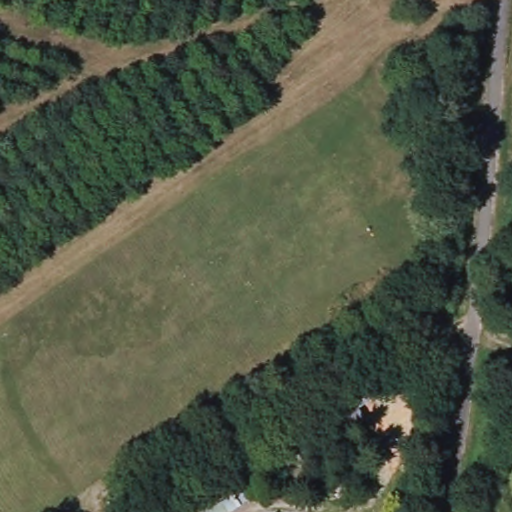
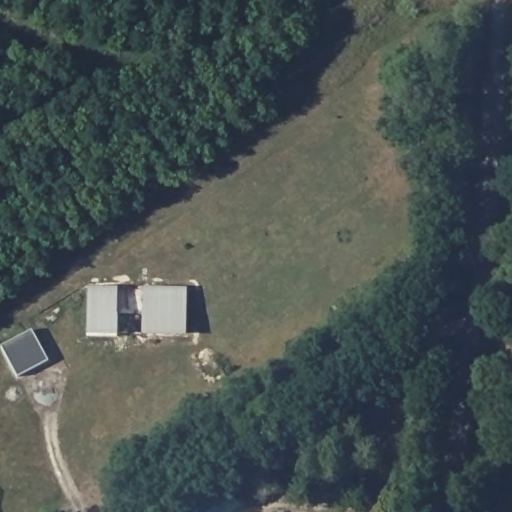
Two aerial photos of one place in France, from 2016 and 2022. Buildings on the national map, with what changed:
new [(120,311),(119,329),(91,328),(92,286),(120,287),(147,287),(189,288),(188,330),(146,330),(146,312),(120,311)]
new [(35,328),(51,359),(20,375),(4,344),(35,328)]
unchanged [(180,512),(173,501),(219,469),(228,483),(186,512),(180,512)]
unchanged [(228,512),(206,512),(222,502),(228,512)]

